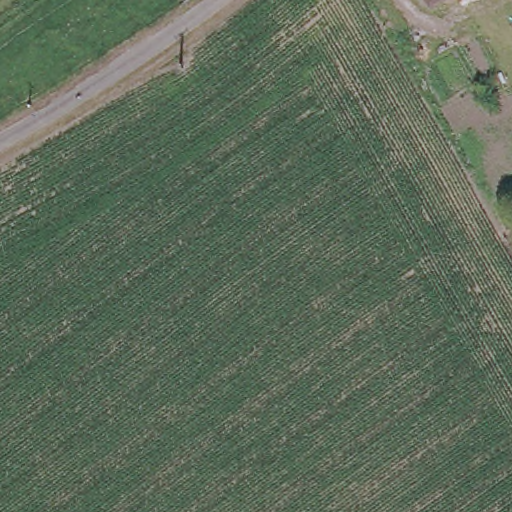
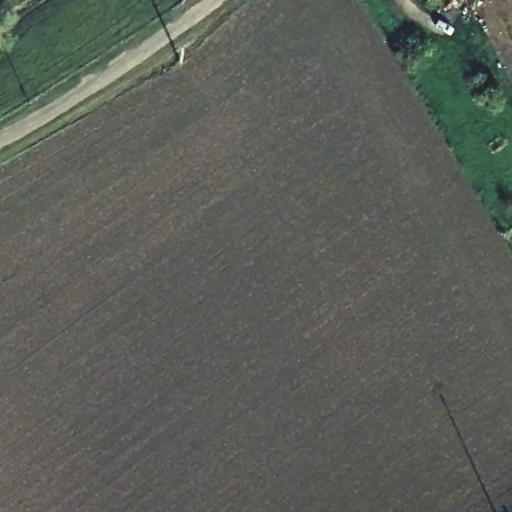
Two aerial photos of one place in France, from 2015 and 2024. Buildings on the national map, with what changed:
unchanged [(433,1),(432,0),(435,0),(433,1)]

